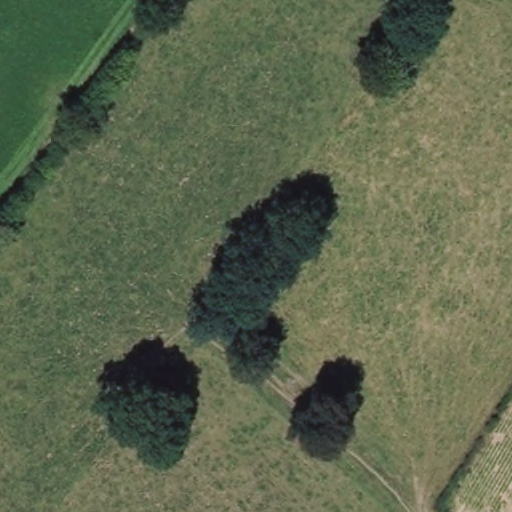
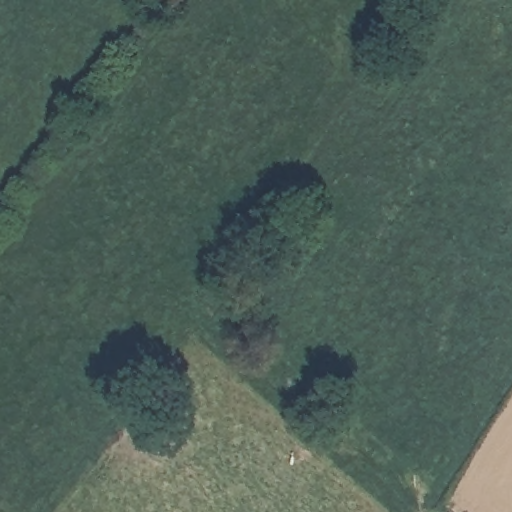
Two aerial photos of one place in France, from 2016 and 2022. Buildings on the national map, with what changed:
[]

